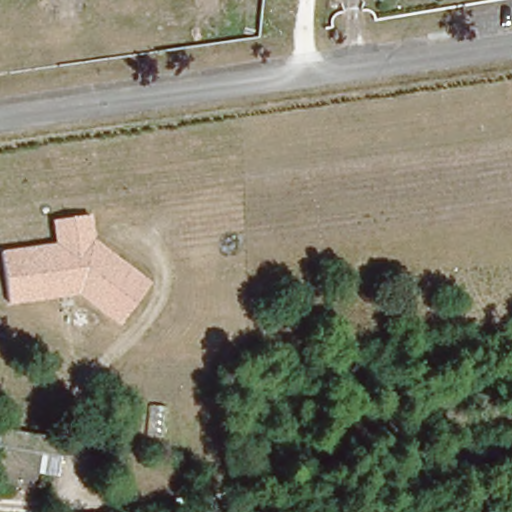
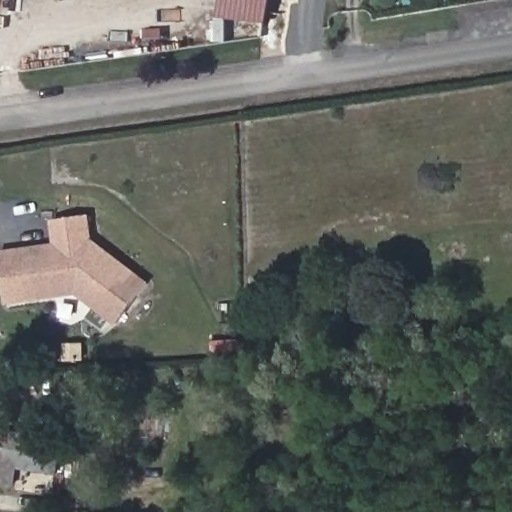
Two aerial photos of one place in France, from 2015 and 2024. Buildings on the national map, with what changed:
new [(259,23),(208,18),(210,0),(262,0),(259,23)]
unchanged [(56,243),(54,220),(92,216),(96,241),(154,282),(120,327),(80,297),(10,306),(2,251),(56,243)]
unchanged [(0,450),(0,429),(65,437),(61,458),(0,450)]
unchanged [(57,477),(22,472),(20,486),(0,482),(0,450),(61,458),(57,477)]

